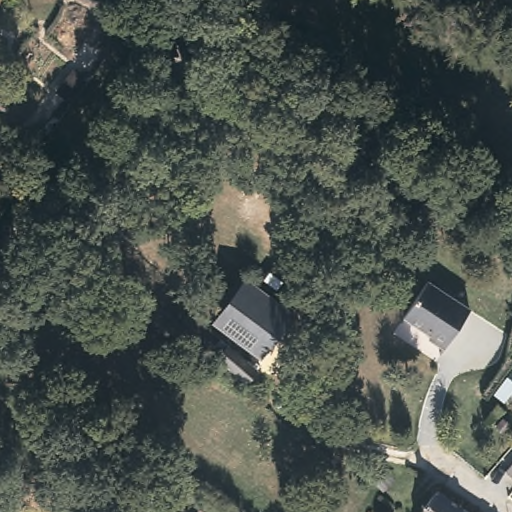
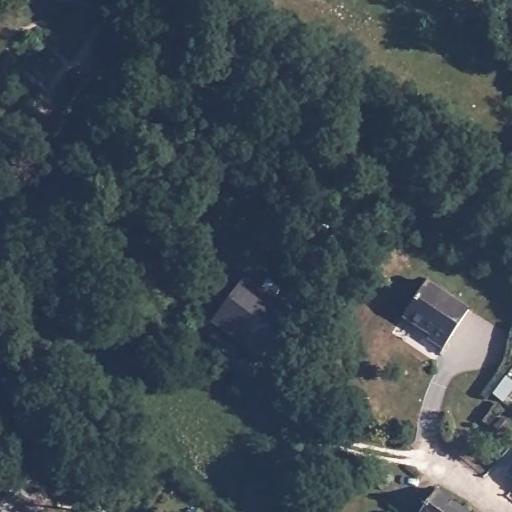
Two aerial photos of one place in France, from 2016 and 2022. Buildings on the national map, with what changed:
unchanged [(296,316),(262,361),(211,323),(246,277),(296,316)]
unchanged [(468,311),(442,349),(427,340),(430,335),(403,317),(427,283),(468,311)]
unchanged [(242,385),(209,362),(218,350),(250,374),(242,385)]
unchanged [(500,418),(508,425),(502,433),(494,425),(500,418)]
unchanged [(512,473),(512,479),(509,476),(512,473)]
unchanged [(442,490),(463,504),(474,512),(425,512),(442,490)]

